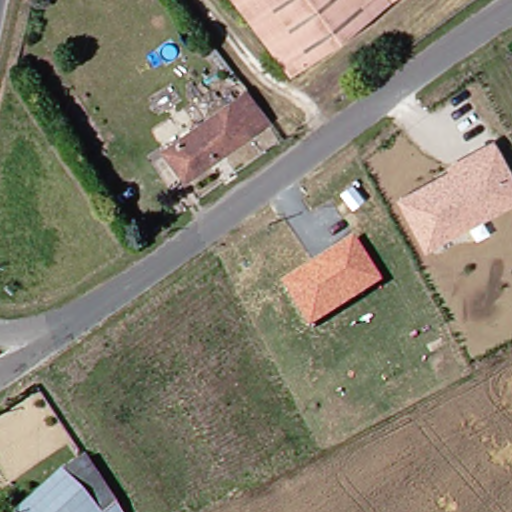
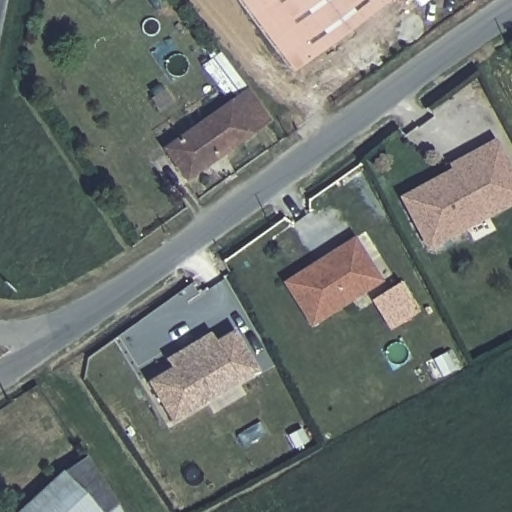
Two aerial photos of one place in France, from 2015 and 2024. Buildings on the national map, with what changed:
unchanged [(293,75),(240,0),(391,0),(293,75)]
unchanged [(187,182),(164,152),(246,91),(266,120),(187,182)]
unchanged [(397,196),(448,168),(446,165),(494,139),(512,172),(512,204),(425,250),(397,196)]
unchanged [(281,281),(354,237),(381,281),(309,326),(281,281)]
new [(164,360),(209,332),(214,340),(233,330),(258,373),(169,423),(145,382),(169,367),(164,360)]
unchanged [(111,505),(116,512),(18,512),(79,460),(111,505)]

